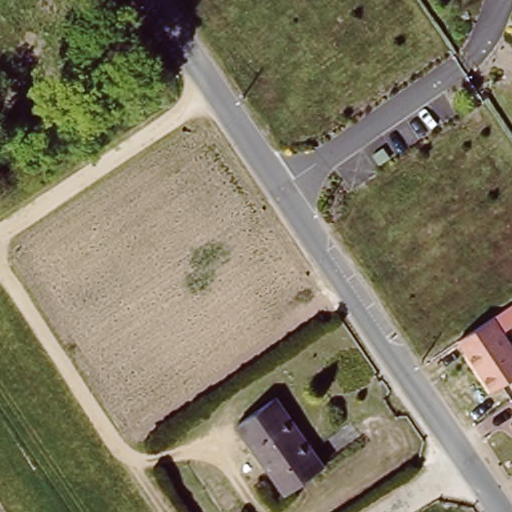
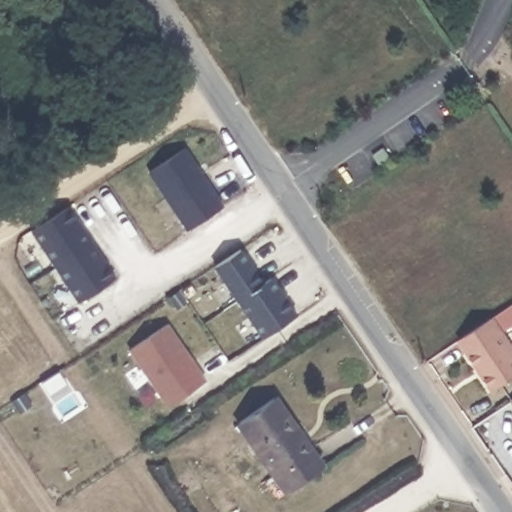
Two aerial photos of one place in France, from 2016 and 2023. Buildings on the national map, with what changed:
new [(188,230),(150,172),(188,148),(226,206),(188,230)]
new [(68,206),(115,278),(78,302),(31,231),(68,206)]
new [(240,249),(263,283),(271,278),(296,316),(263,338),(214,266),(240,249)]
unchanged [(487,318),(512,358),(512,376),(489,391),(454,340),(487,318)]
new [(166,325),(185,352),(183,353),(194,370),(196,369),(206,383),(168,408),(129,350),(166,325)]
unchanged [(512,397),(512,402),(509,398),(512,397)]
unchanged [(270,403),(318,476),(278,500),(232,427),(270,403)]

